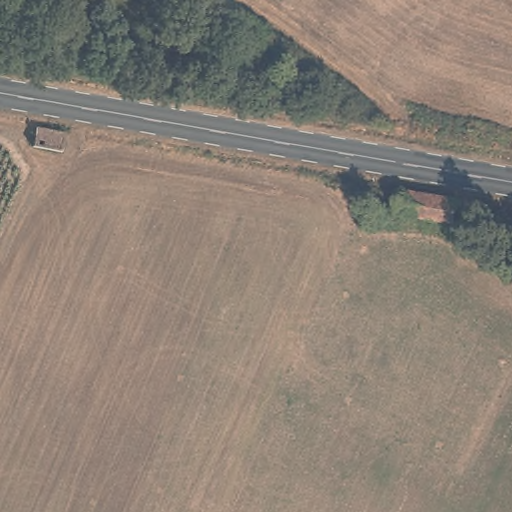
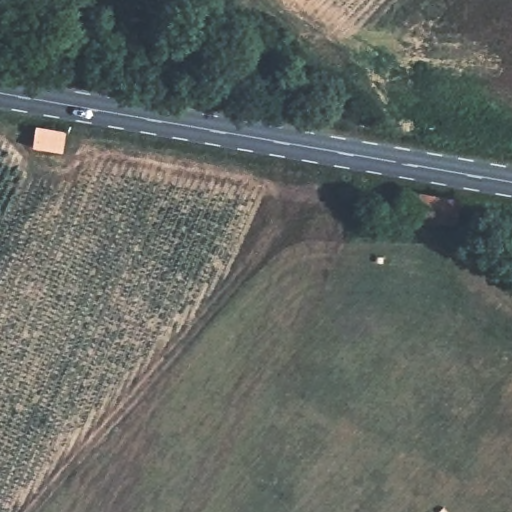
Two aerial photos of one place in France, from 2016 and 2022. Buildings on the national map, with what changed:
unchanged [(65,133),(61,153),(32,147),(35,127),(65,133)]
unchanged [(396,216),(400,191),(456,201),(453,225),(396,216)]

